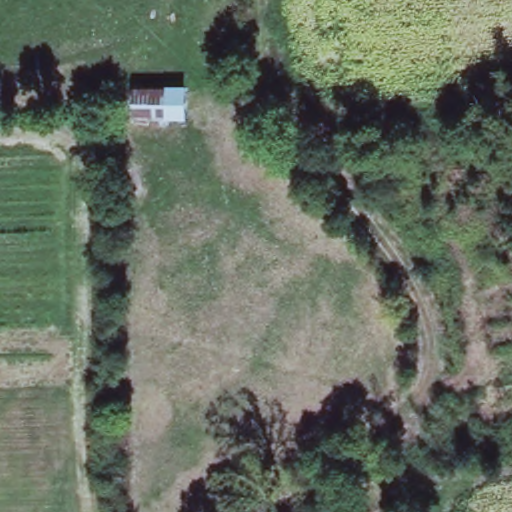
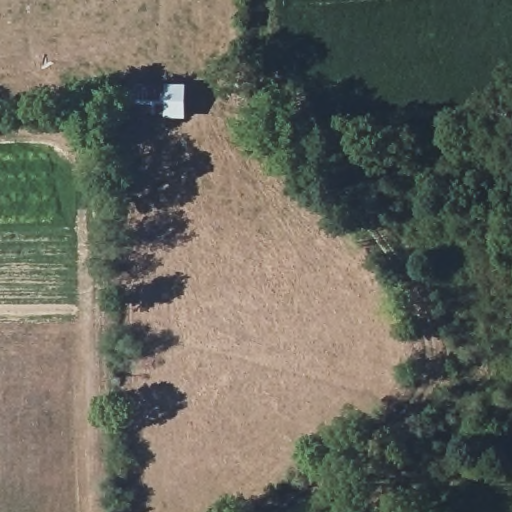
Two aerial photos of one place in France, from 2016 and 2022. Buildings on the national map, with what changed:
unchanged [(191,86),(188,130),(137,130),(139,85),(191,86)]

